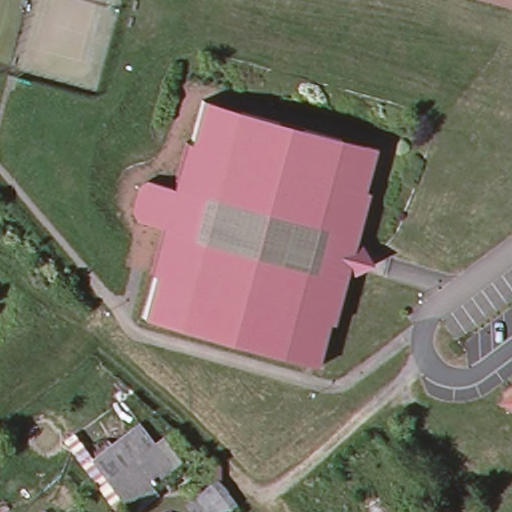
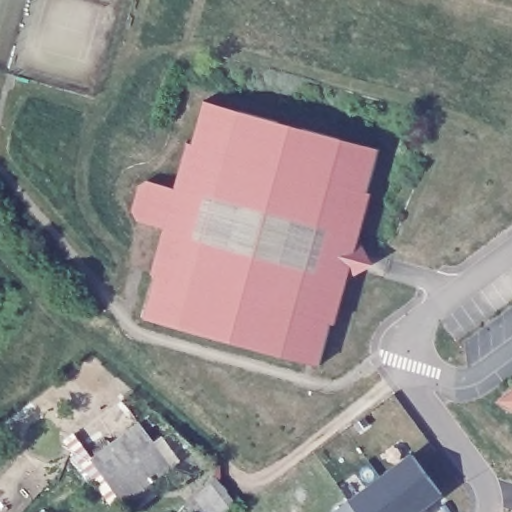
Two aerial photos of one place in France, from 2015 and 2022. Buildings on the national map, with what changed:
unchanged [(139,186),(147,181),(172,188),(185,142),(192,144),(203,102),(380,150),(369,193),(375,194),(360,244),(369,259),(365,270),(350,278),(337,326),(332,324),(320,367),(144,317),(155,275),(149,274),(162,227),(137,220),(132,210),(139,186)]
unchanged [(510,402),(509,399),(512,396),(512,403),(510,402)]
unchanged [(121,499),(109,483),(107,481),(93,462),(140,425),(156,445),(157,446),(170,462),(174,468),(125,504),(121,499)]
new [(415,455),(444,495),(427,507),(429,512),(335,512),(352,500),(415,455)]
unchanged [(231,511),(230,512),(197,512),(191,504),(212,487),(231,511)]

